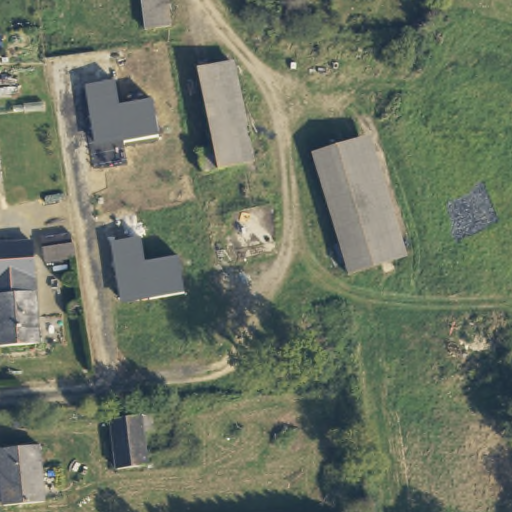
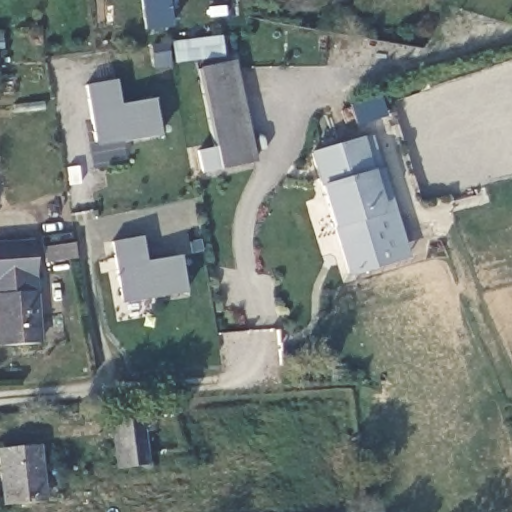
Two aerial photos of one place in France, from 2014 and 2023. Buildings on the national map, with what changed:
unchanged [(145,30),(141,0),(168,0),(171,27),(145,30)]
unchanged [(271,35),(247,33),(248,21),(272,23),(271,35)]
unchanged [(251,162),(197,172),(193,149),(211,145),(194,70),(229,63),(251,162)]
unchanged [(83,87),(114,82),(118,105),(153,100),(159,137),(95,146),(83,87)]
unchanged [(397,255),(360,268),(351,271),(309,151),(357,134),(377,196),(391,235),(397,255)]
unchanged [(41,262),(38,240),(38,237),(67,234),(68,244),(70,244),(71,259),(41,262)]
unchanged [(109,243),(140,238),(144,262),(178,256),(184,294),(122,304),(109,243)]
unchanged [(39,343),(0,347),(0,245),(29,241),(39,343)]
unchanged [(150,432),(138,434),(141,468),(110,470),(107,420),(149,417),(150,432)]
unchanged [(3,502),(0,475),(0,444),(36,440),(42,499),(3,502)]

